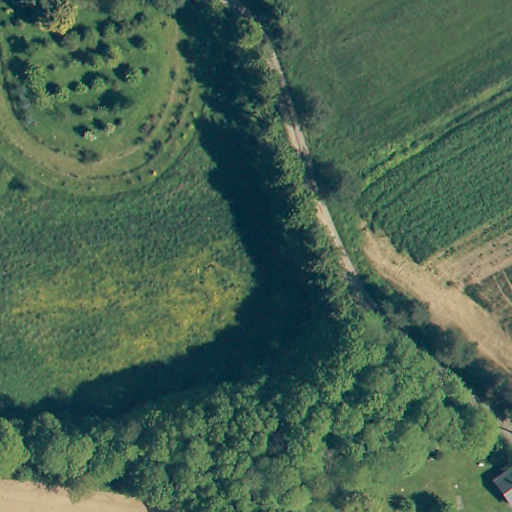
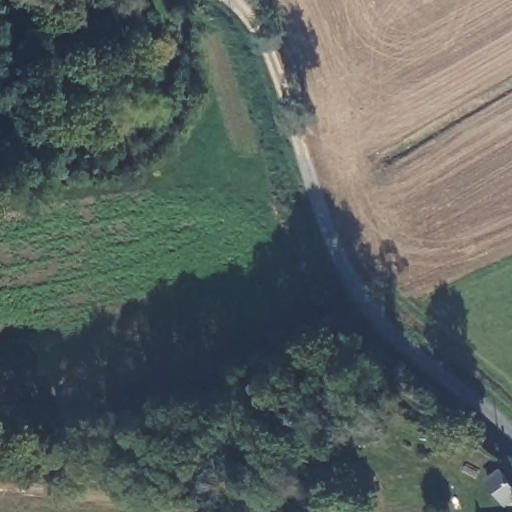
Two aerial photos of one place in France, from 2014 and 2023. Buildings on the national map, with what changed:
unchanged [(512,470),(512,497),(501,476),(512,470)]

